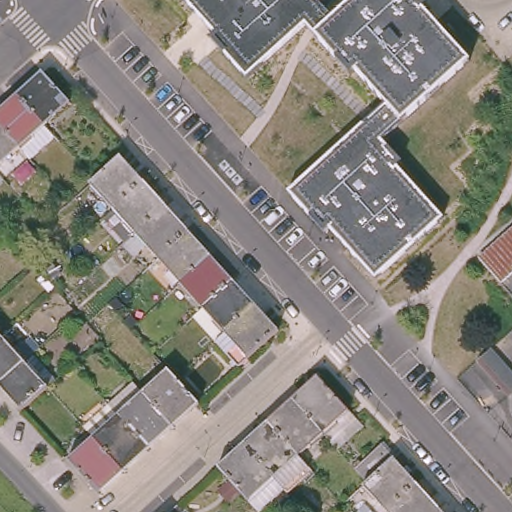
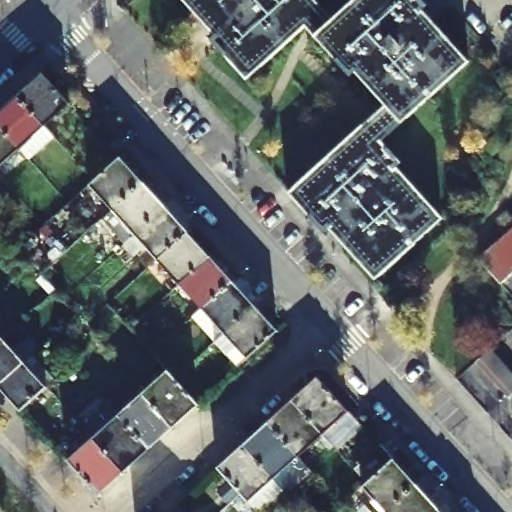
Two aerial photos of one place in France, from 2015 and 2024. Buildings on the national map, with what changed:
unchanged [(339,25),(367,0),(421,0),(430,11),(425,16),(464,61),(379,142),(398,163),(394,168),(439,217),(373,276),(327,227),(322,232),(286,194),(383,104),(352,72),(349,75),(303,26),(245,77),(210,39),(215,34),(185,0),(316,0),(339,25)]
unchanged [(44,73),(70,102),(45,125),(19,96),(44,73)]
unchanged [(0,113),(19,96),(45,125),(20,147),(0,125),(0,113)]
unchanged [(0,164),(0,125),(20,147),(0,164)]
unchanged [(95,177),(100,174),(124,152),(147,176),(119,202),(95,177)]
unchanged [(147,176),(168,200),(140,226),(119,202),(147,176)]
unchanged [(190,225),(163,251),(140,226),(168,200),(190,225)]
unchanged [(190,225),(214,251),(186,276),(163,251),(190,225)]
unchanged [(480,257),(495,244),(512,228),(512,272),(501,282),(480,257)]
unchanged [(236,275),(209,300),(186,276),(214,251),(236,275)]
unchanged [(197,311),(209,300),(236,275),(260,301),(220,337),(197,311)]
unchanged [(260,301),(280,324),(280,326),(242,361),(220,337),(260,301)]
unchanged [(0,334),(2,336),(0,338),(0,334)]
unchanged [(24,360),(0,382),(0,338),(2,336),(24,360)]
unchanged [(497,381),(476,358),(489,347),(512,373),(512,391),(509,395),(497,381)]
unchanged [(22,408),(0,384),(0,382),(24,360),(47,386),(22,408)]
unchanged [(142,392),(168,368),(175,377),(198,401),(172,425),(142,392)]
unchanged [(318,378),(348,411),(324,432),(294,400),(318,378)]
unchanged [(148,447),(118,414),(142,392),(172,425),(148,447)]
unchanged [(294,400),(324,432),(299,454),(269,422),(294,400)]
unchanged [(118,414),(148,447),(124,469),(94,436),(118,414)]
unchanged [(244,445),(269,422),(299,454),(274,477),(244,445)]
unchanged [(98,492),(69,460),(94,436),(124,469),(98,492)]
unchanged [(274,477),(248,500),(242,493),(219,467),(244,445),(274,477)]
unchanged [(365,485),(369,482),(392,460),(415,485),(388,511),(365,485)]
unchanged [(434,503),(439,508),(435,512),(389,512),(388,511),(415,485),(432,503),(434,503)]
unchanged [(442,512),(435,512),(439,508),(442,512)]

